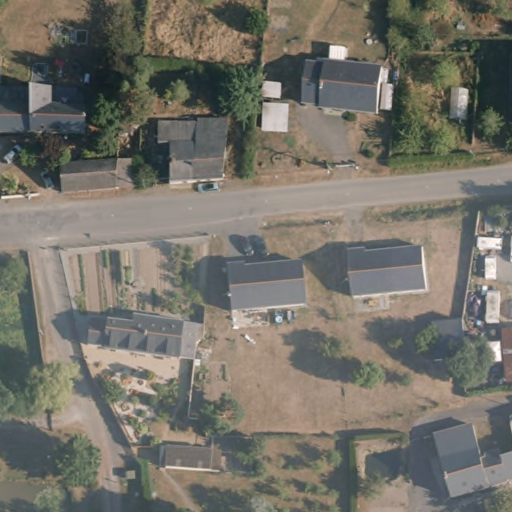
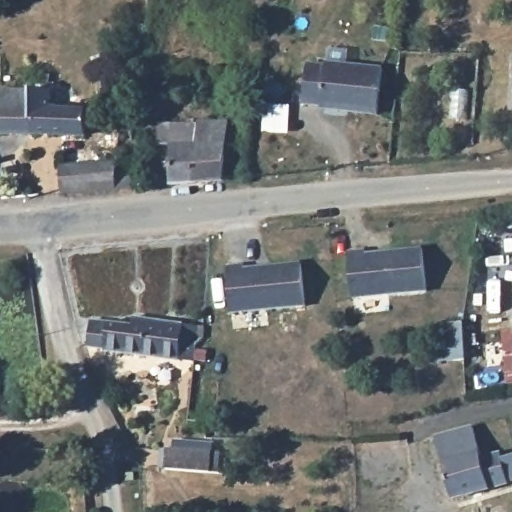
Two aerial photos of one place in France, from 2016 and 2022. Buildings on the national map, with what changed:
unchanged [(316,111),(316,108),(298,105),(306,66),(322,69),(322,66),(331,68),(325,111),(316,111)]
unchanged [(381,76),(372,120),(325,111),(331,68),(381,76)]
unchanged [(52,97),(52,117),(88,119),(87,142),(0,139),(0,112),(4,96),(52,97)]
unchanged [(197,124),(198,118),(224,118),(225,179),(168,185),(167,143),(155,143),(156,124),(197,124)]
unchanged [(127,123),(126,153),(119,153),(120,126),(127,123)]
unchanged [(119,161),(119,159),(127,159),(127,164),(134,164),(135,188),(119,189),(67,194),(66,166),(119,161)]
unchanged [(424,250),(427,294),(355,301),(350,253),(367,252),(367,255),(424,250)]
unchanged [(302,264),(306,307),(232,315),(229,266),(245,266),(245,269),(302,264)]
unchanged [(197,329),(196,340),(187,348),(187,364),(97,352),(98,347),(81,345),(85,318),(126,325),(127,317),(197,329)]
unchanged [(456,320),(462,360),(431,363),(427,324),(456,320)]
unchanged [(512,388),(501,389),(495,336),(512,335),(512,388)]
unchanged [(483,444),(486,453),(497,450),(498,457),(512,453),(512,481),(507,482),(508,487),(448,504),(429,438),(470,427),(476,446),(483,444)]
unchanged [(212,456),(212,475),(162,472),(162,453),(212,456)]

